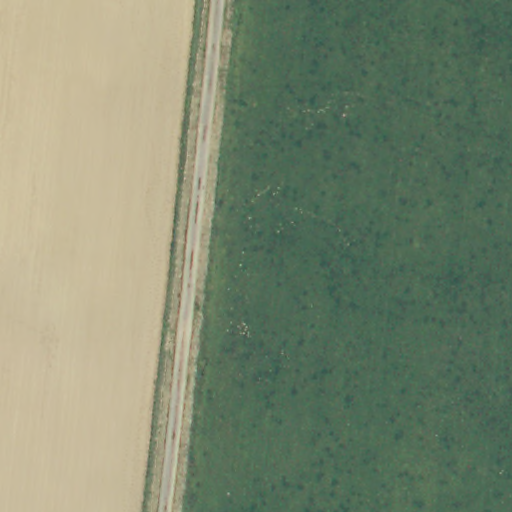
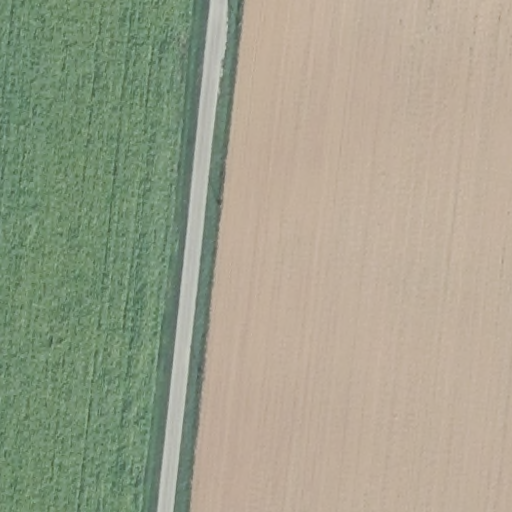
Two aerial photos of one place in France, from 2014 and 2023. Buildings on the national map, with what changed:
[]

